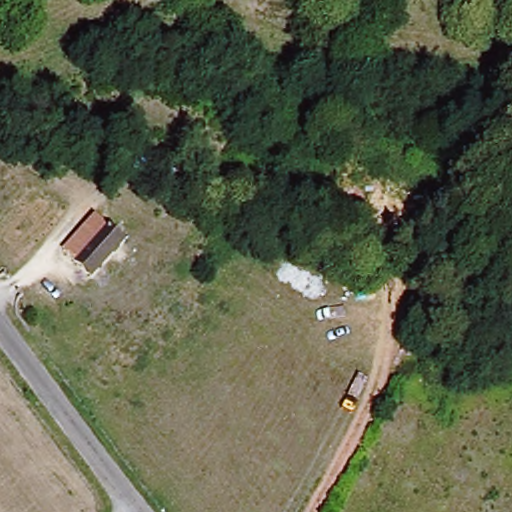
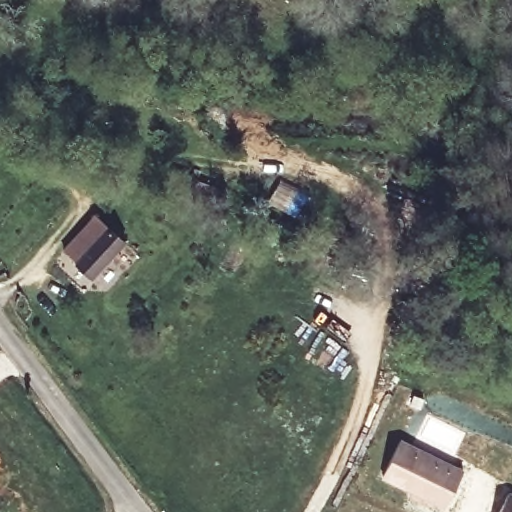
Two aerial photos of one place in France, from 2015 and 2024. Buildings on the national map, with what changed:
unchanged [(126,248),(89,276),(66,247),(89,230),(100,244),(115,233),(126,248)]
new [(379,477),(397,442),(460,473),(443,508),(429,501),(427,506),(408,497),(410,492),(379,477)]
new [(504,495),(512,499),(512,512),(496,512),(504,495)]

